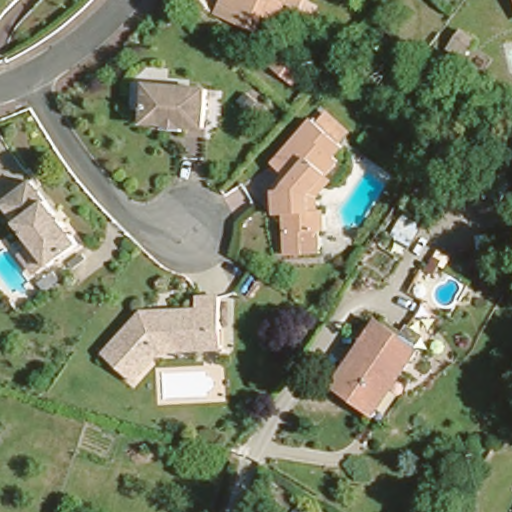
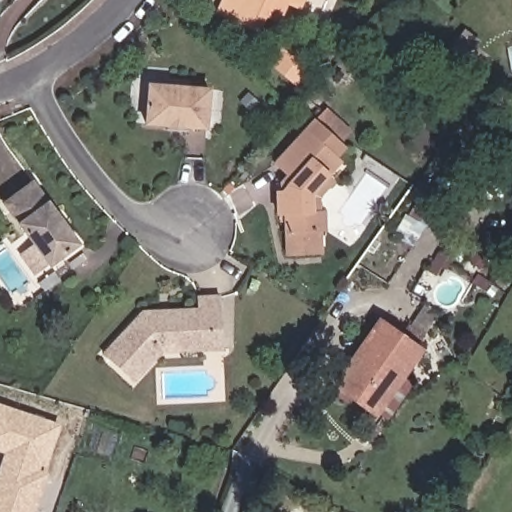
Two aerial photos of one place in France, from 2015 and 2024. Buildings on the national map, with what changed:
new [(220,0),(288,0),(279,25),(265,19),(259,34),(214,14),(220,0)]
unchanged [(297,2),(293,0),(297,0),(297,2)]
unchanged [(279,51),(306,72),(293,87),(268,65),(279,51)]
unchanged [(164,127),(164,121),(142,119),(145,77),(207,82),(204,125),(179,123),(179,127),(164,127)]
unchanged [(307,190),(307,203),(316,204),(318,222),(312,222),(313,251),(279,252),(277,174),(265,164),(302,122),(309,127),(320,114),(342,133),(329,148),(332,150),(328,154),(331,156),(317,171),(321,175),(307,190)]
unchanged [(27,246),(35,240),(0,195),(0,193),(28,172),(77,235),(48,257),(40,263),(27,246)]
unchanged [(189,346),(159,347),(135,377),(100,348),(135,307),(188,305),(188,294),(217,293),(218,327),(219,344),(189,346)]
unchanged [(405,340),(412,331),(419,337),(397,371),(391,367),(367,404),(332,379),(376,317),(405,340)]
new [(51,466),(35,512),(0,512),(0,463),(3,454),(0,453),(0,404),(61,424),(47,464),(51,466)]

